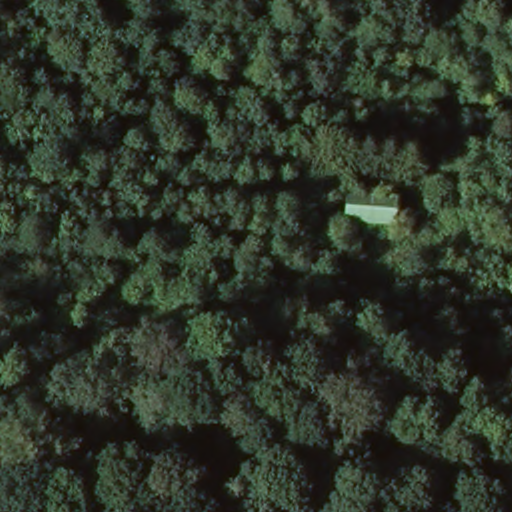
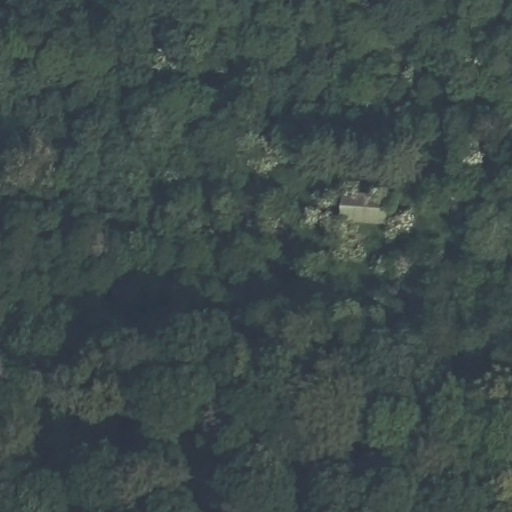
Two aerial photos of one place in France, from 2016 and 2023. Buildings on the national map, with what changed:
unchanged [(394,199),(392,227),(340,220),(343,193),(394,199)]

